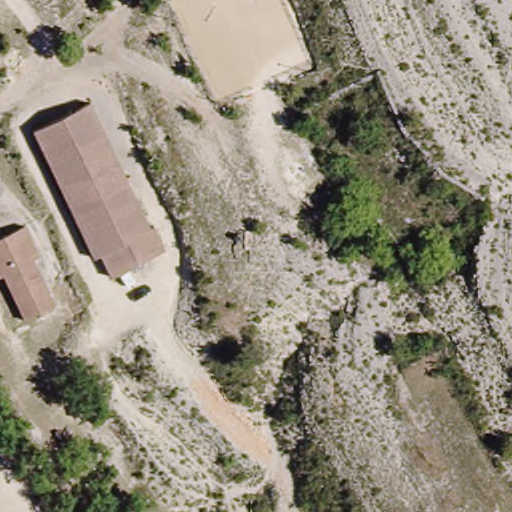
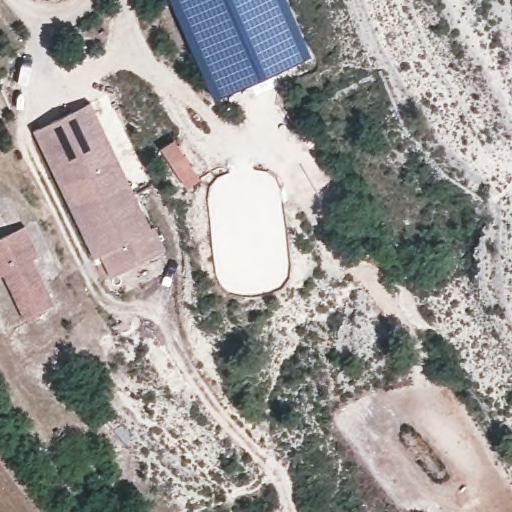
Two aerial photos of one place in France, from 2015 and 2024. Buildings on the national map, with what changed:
new [(215,99),(170,0),(287,0),(312,57),(215,99)]
unchanged [(150,226),(158,221),(168,250),(111,275),(100,249),(90,253),(30,130),(92,100),(150,226)]
unchanged [(32,258),(53,301),(23,314),(0,267),(0,235),(24,224),(38,254),(32,258)]

